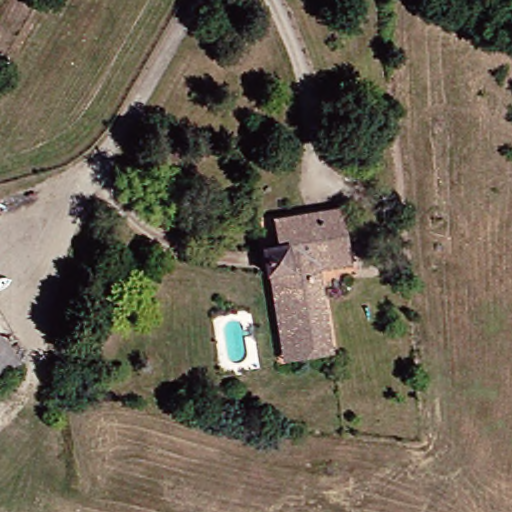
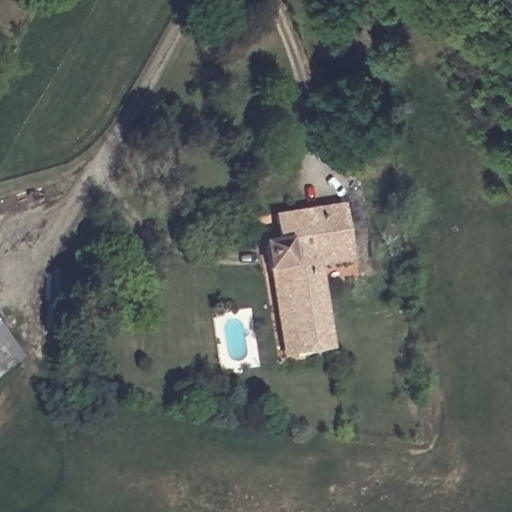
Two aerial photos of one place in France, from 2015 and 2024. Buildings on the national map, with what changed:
unchanged [(324,348),(287,354),(273,266),(260,269),(255,242),(268,240),(265,213),(335,202),(345,259),(311,264),(324,348)]
unchanged [(12,360),(0,369),(0,345),(12,360)]

